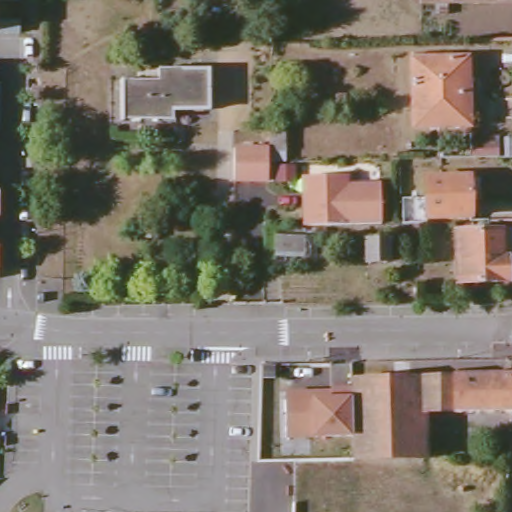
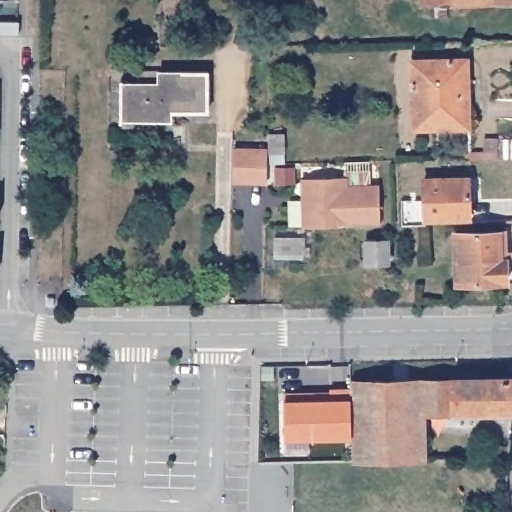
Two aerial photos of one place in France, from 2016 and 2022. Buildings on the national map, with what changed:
unchanged [(418,4),(418,0),(512,0),(512,3),(418,4)]
unchanged [(0,33),(0,21),(18,21),(18,26),(18,33),(0,33)]
unchanged [(414,127),(412,59),(467,58),(468,125),(414,127)]
unchanged [(118,79),(133,79),(136,79),(136,68),(206,69),(206,108),(160,109),(159,119),(133,119),(118,119),(118,79)]
unchanged [(264,168),(264,137),(279,137),(279,167),(264,168)]
unchanged [(496,158),(496,139),(512,139),(512,158),(496,158)]
unchanged [(233,184),(233,152),(261,153),(259,185),(233,184)]
unchanged [(306,226),(305,207),(304,177),(314,177),(347,176),(347,186),(381,186),(381,224),(314,226),(306,226)]
unchanged [(425,217),(424,178),(463,177),(464,216),(425,217)]
unchanged [(144,236),(145,221),(159,221),(159,237),(144,236)]
unchanged [(507,258),(507,281),(458,281),(457,232),(501,232),(501,258),(507,258)]
unchanged [(369,239),(389,239),(390,260),(369,261),(369,239)]
unchanged [(281,256),(281,241),(308,241),(308,256),(281,256)]
unchanged [(359,460),(358,436),(356,388),(355,379),(512,377),(512,409),(428,412),(429,460),(359,460)]
unchanged [(290,438),(289,401),(288,393),(335,391),(334,389),(356,388),(358,436),(290,438)]
unchanged [(491,459),(491,446),(512,446),(512,459),(491,459)]

